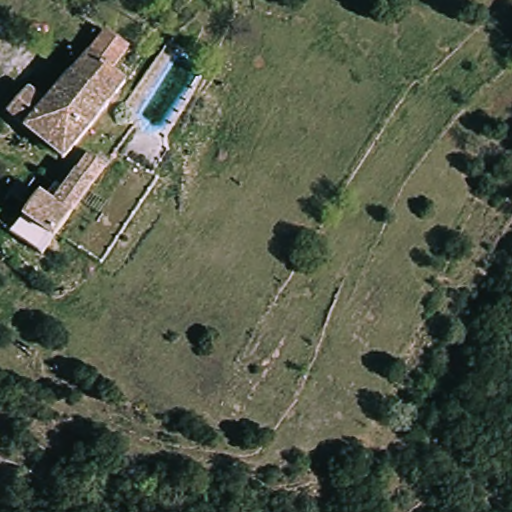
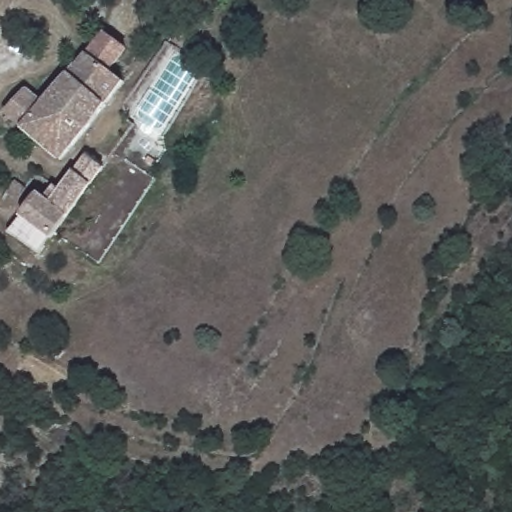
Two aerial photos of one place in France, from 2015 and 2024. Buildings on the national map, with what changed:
unchanged [(104,34),(123,49),(106,70),(121,81),(64,160),(6,114),(28,88),(44,101),(104,34)]
unchanged [(53,237),(21,214),(38,190),(54,203),(67,183),(90,151),(107,163),(53,237)]

